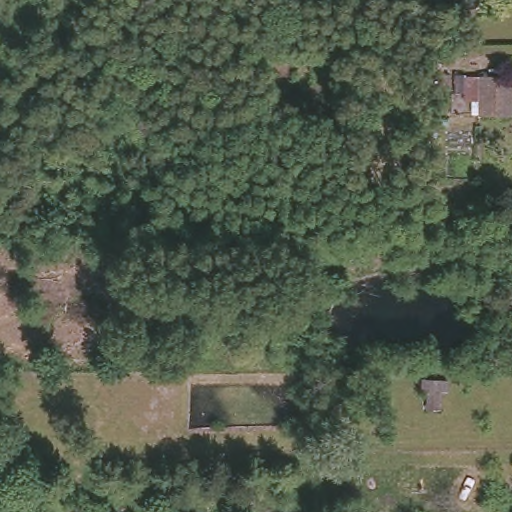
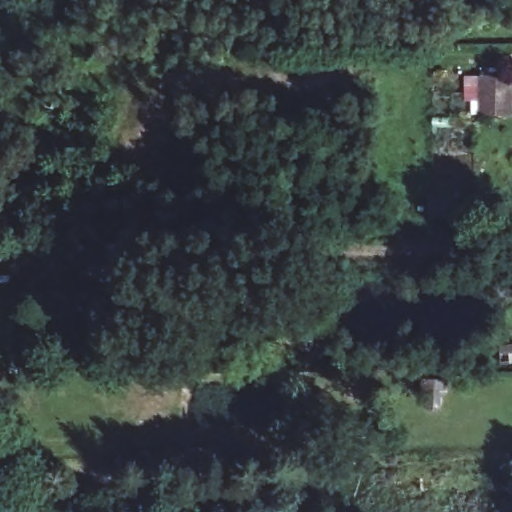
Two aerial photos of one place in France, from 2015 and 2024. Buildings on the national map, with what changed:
unchanged [(510,115),(480,115),(480,74),(510,75),(510,115)]
unchanged [(445,397),(432,397),(432,384),(427,384),(427,372),(452,374),(451,385),(446,385),(445,397)]

